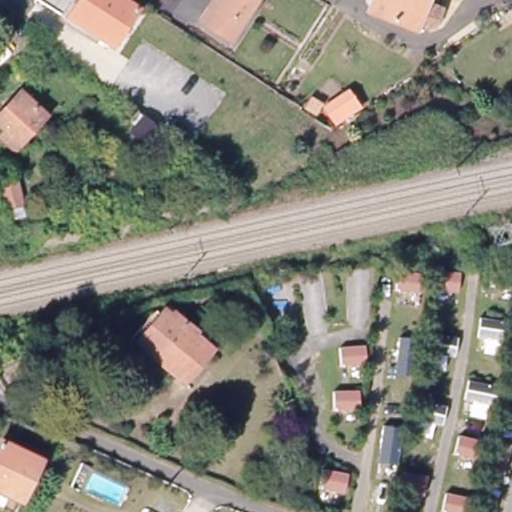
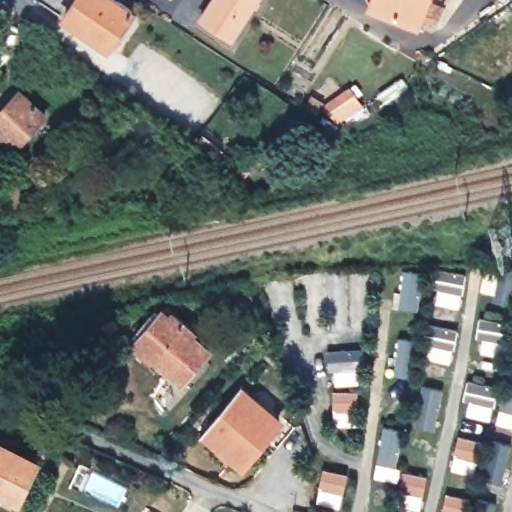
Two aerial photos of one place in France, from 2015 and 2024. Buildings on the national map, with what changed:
unchanged [(46,12),(54,0),(105,0),(143,26),(120,62),(46,12)]
unchanged [(201,20),(214,0),(258,0),(232,40),(201,20)]
unchanged [(444,17),(438,36),(427,39),(375,22),(380,7),(370,4),(371,0),(430,0),(427,12),(444,17)]
unchanged [(364,107),(336,126),(324,107),(318,116),(305,109),(311,96),(324,104),(349,88),(364,107)]
unchanged [(8,132),(0,125),(0,119),(21,95),(44,117),(15,150),(2,138),(8,132)]
demolished [(315,138),(291,122),(299,110),(324,126),(315,138)]
unchanged [(159,127),(159,128),(165,133),(158,141),(152,136),(146,143),(131,131),(136,125),(130,120),(137,112),(143,117),(144,115),(154,124),(159,127)]
unchanged [(18,186),(24,209),(12,212),(7,216),(1,190),(18,186)]
unchanged [(179,385),(184,388),(181,393),(174,388),(176,386),(131,351),(158,318),(187,340),(195,330),(210,341),(203,351),(204,352),(179,385)]
new [(284,418),(243,470),(199,437),(242,386),(284,418)]
unchanged [(37,462),(20,499),(0,491),(0,445),(37,462)]

